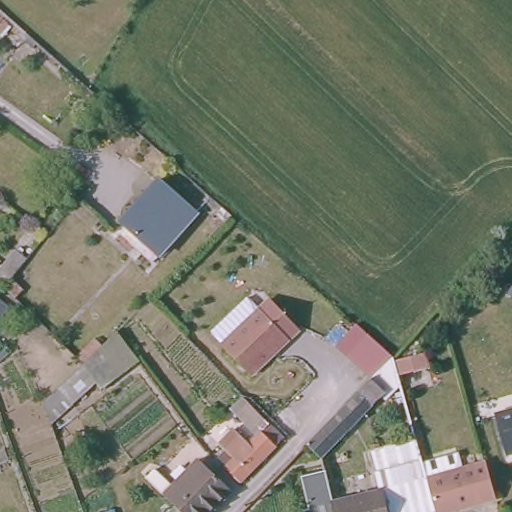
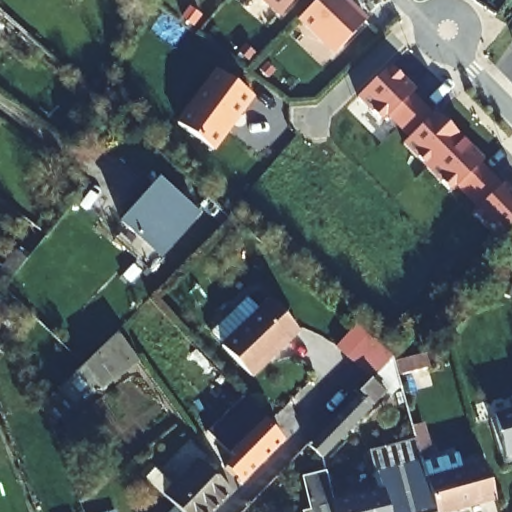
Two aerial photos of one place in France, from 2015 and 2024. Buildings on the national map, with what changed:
new [(287,10),(270,0),(292,0),(287,10)]
new [(334,55),(297,21),(319,0),(343,0),(367,23),(334,55)]
unchanged [(12,19),(0,30),(0,8),(12,19)]
new [(472,214),(478,209),(457,187),(448,194),(402,146),(408,140),(386,120),(382,124),(355,99),(384,71),(386,74),(396,67),(416,89),(411,93),(482,160),(479,163),(502,186),(504,184),(512,191),(512,224),(497,239),(472,214)]
new [(214,71),(255,96),(215,151),(177,125),(214,71)]
unchanged [(122,220),(159,181),(196,213),(159,254),(122,220)]
unchanged [(297,328),(250,376),(220,346),(267,298),(297,328)]
unchanged [(391,357),(369,380),(333,347),(354,325),(391,357)]
unchanged [(101,392),(99,388),(83,363),(115,332),(135,358),(101,392)]
unchanged [(369,380),(391,357),(392,358),(395,382),(320,457),(305,442),(369,380)]
unchanged [(55,430),(44,401),(44,398),(83,363),(99,388),(55,430)]
unchanged [(226,453),(217,445),(232,431),(246,445),(255,435),(235,413),(247,402),(282,438),(239,482),(224,467),(219,461),(226,453)]
unchanged [(495,417),(512,413),(512,454),(507,456),(495,417)]
new [(407,512),(402,487),(379,491),(370,453),(415,440),(412,428),(425,425),(433,454),(422,457),(429,482),(436,510),(429,512),(407,512)]
unchanged [(204,512),(162,512),(172,502),(142,474),(147,470),(150,466),(169,483),(194,458),(198,462),(225,491),(204,512)]
unchanged [(487,466),(495,493),(436,510),(429,482),(487,466)]
unchanged [(312,512),(304,473),(324,469),(332,501),(402,487),(407,512),(312,512)]

